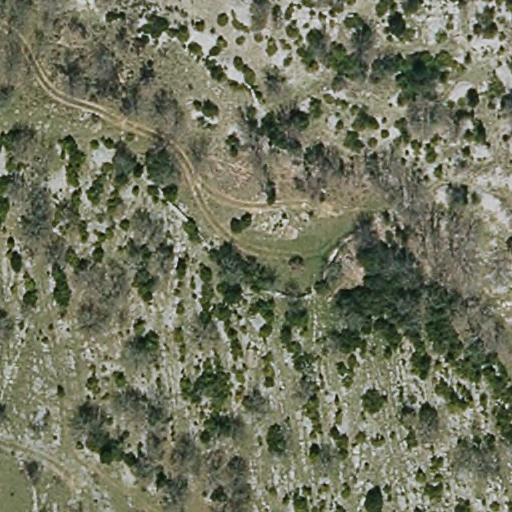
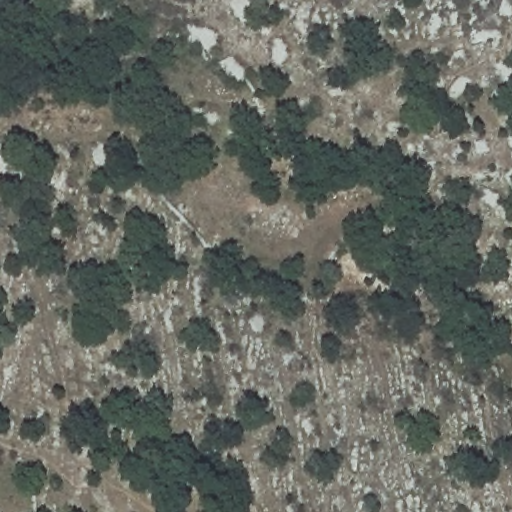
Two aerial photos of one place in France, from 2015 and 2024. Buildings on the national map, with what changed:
[]

